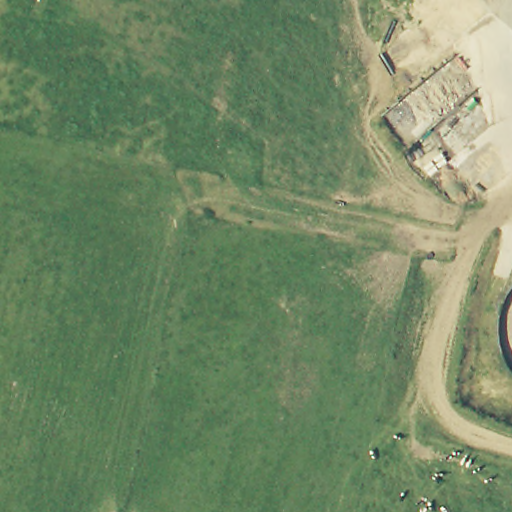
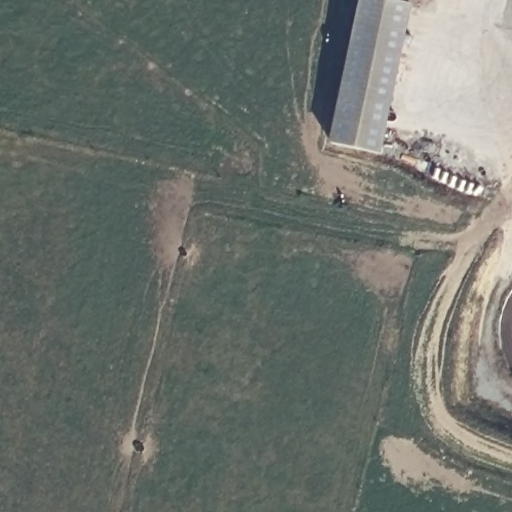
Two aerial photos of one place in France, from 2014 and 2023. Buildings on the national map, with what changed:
new [(382,154),(328,143),(360,0),(390,0),(413,5),(382,154)]

